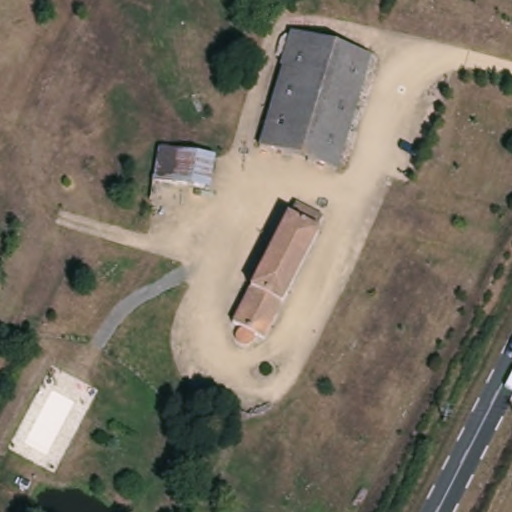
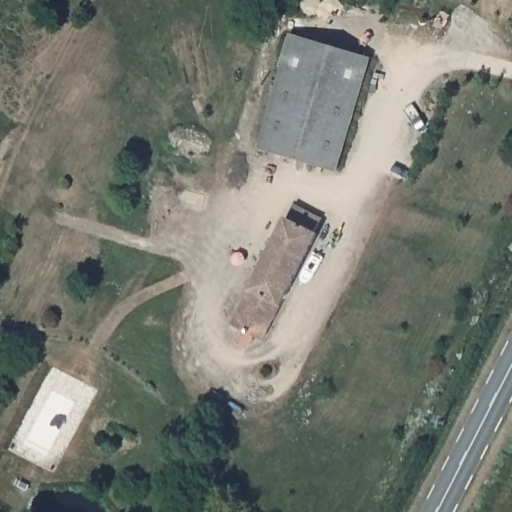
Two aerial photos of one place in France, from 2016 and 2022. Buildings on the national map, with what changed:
unchanged [(302,37),(377,57),(341,173),(263,149),(294,36),(302,37)]
demolished [(216,192),(163,182),(162,182),(170,148),(197,153),(222,159),(216,192)]
unchanged [(262,352),(226,333),(232,320),(227,316),(236,301),(247,308),(295,217),(297,217),(304,205),(334,220),(327,233),(330,235),(262,352)]

